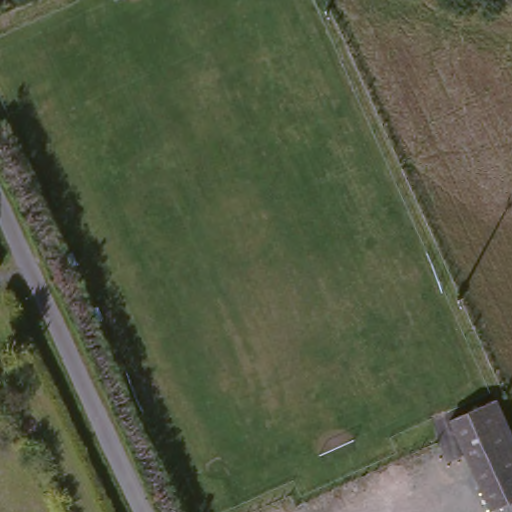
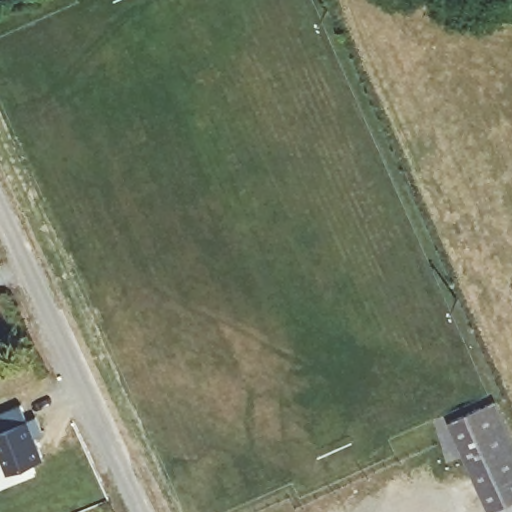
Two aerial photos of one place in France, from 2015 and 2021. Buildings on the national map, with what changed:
unchanged [(495,512),(484,512),(443,420),(491,399),(512,445),(512,512),(505,512),(504,508),(495,512)]
new [(22,403),(29,418),(36,415),(44,434),(36,437),(44,458),(8,473),(0,455),(0,412),(22,403)]

